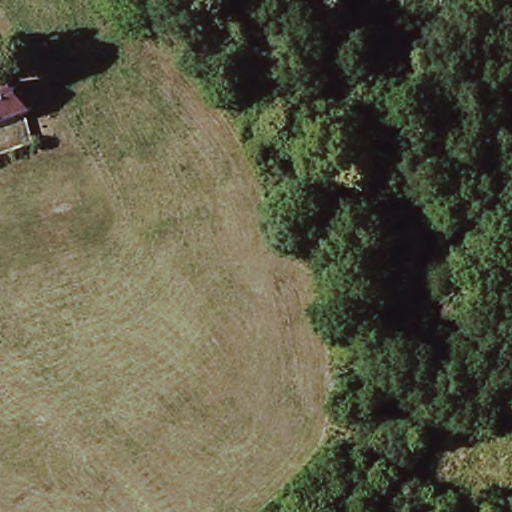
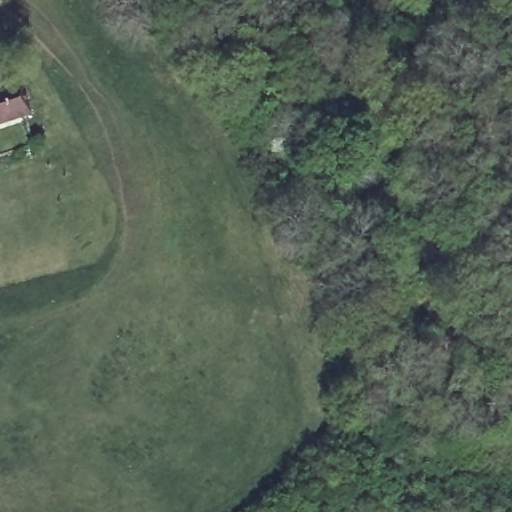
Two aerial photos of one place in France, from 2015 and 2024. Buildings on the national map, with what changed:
unchanged [(10,82),(22,115),(0,122),(0,86),(10,82)]

